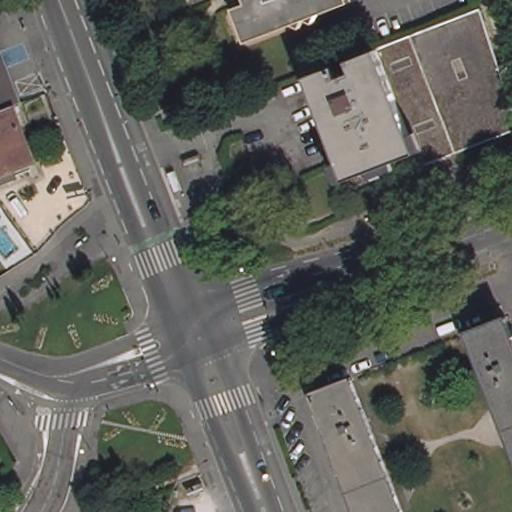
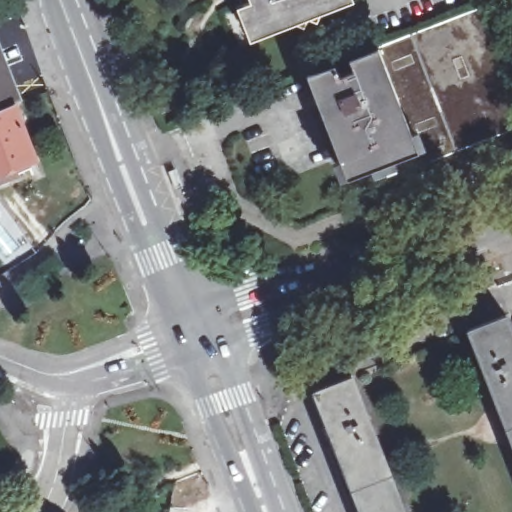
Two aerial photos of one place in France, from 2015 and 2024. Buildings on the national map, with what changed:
unchanged [(315,13),(312,22),(303,17),(264,32),(257,12),(262,10),(258,0),(349,0),(315,13)]
unchanged [(460,150),(412,35),(482,8),(512,101),(512,130),(460,150)]
unchanged [(419,150),(379,48),(412,35),(460,150),(394,175),(389,161),(419,150)]
unchanged [(24,102),(16,103),(37,159),(0,178),(0,40),(24,102)]
unchanged [(371,168),(347,178),(307,74),(336,63),(341,75),(355,70),(350,58),(379,48),(419,150),(389,161),(371,168)]
unchanged [(512,329),(512,443),(505,425),(468,329),(507,314),(512,329)]
unchanged [(361,512),(356,499),(354,493),(349,481),(347,476),(332,437),(327,425),(314,390),(352,375),(405,512),(361,512)]

